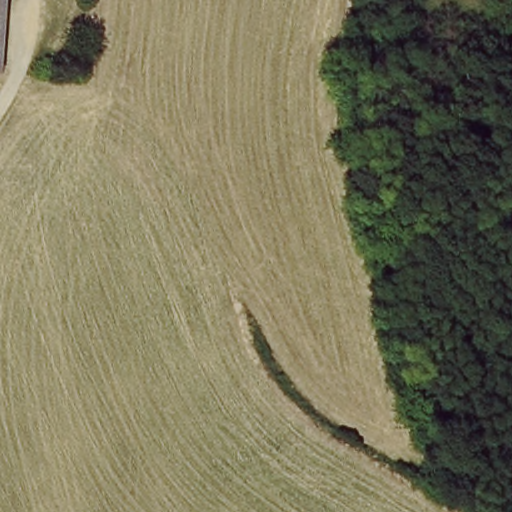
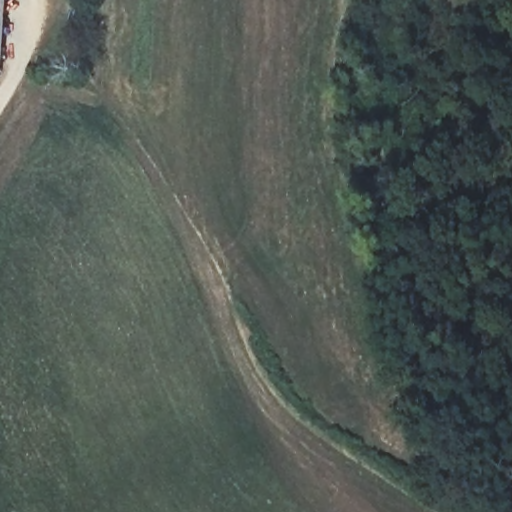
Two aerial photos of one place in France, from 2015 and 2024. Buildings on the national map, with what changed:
unchanged [(10,0),(4,72),(0,72),(0,0),(10,0)]

